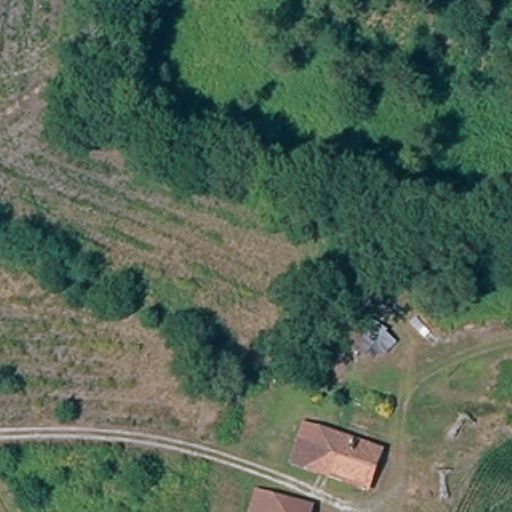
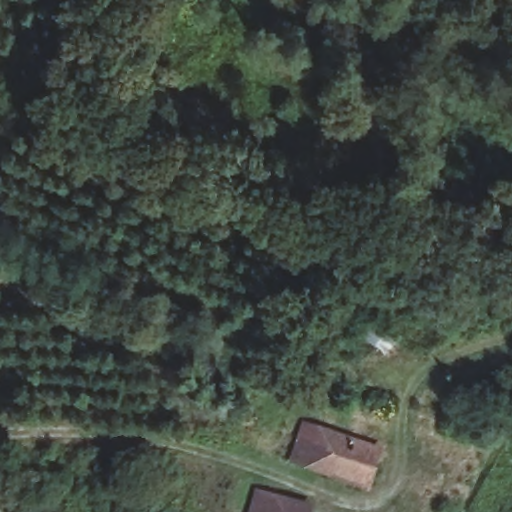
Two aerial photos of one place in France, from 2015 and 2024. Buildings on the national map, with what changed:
unchanged [(374,318),(388,330),(386,332),(397,341),(373,369),(348,347),(374,318)]
unchanged [(290,462),(303,424),(381,451),(368,489),(290,462)]
unchanged [(310,512),(251,512),(257,492),(311,507),(310,512)]

